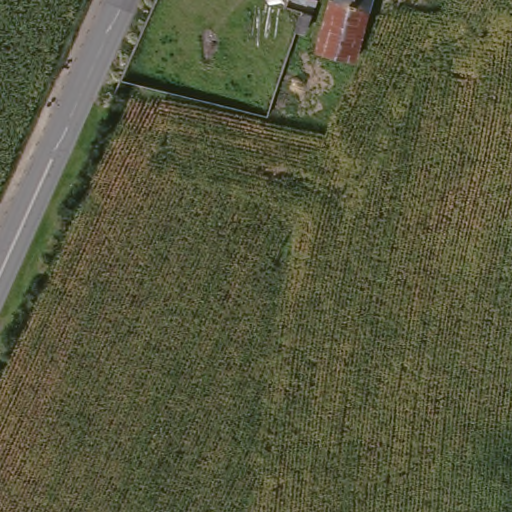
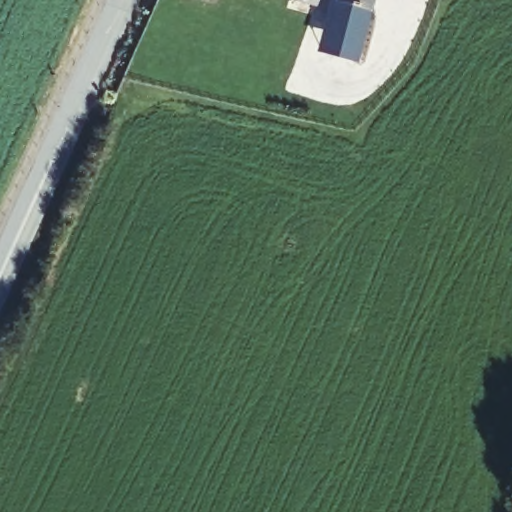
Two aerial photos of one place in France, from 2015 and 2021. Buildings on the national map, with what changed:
unchanged [(318,0),(316,7),(291,1),(291,0),(318,0)]
unchanged [(325,49),(336,0),(373,0),(360,57),(325,49)]
unchanged [(302,17),(313,20),(308,38),(298,35),(302,17)]

